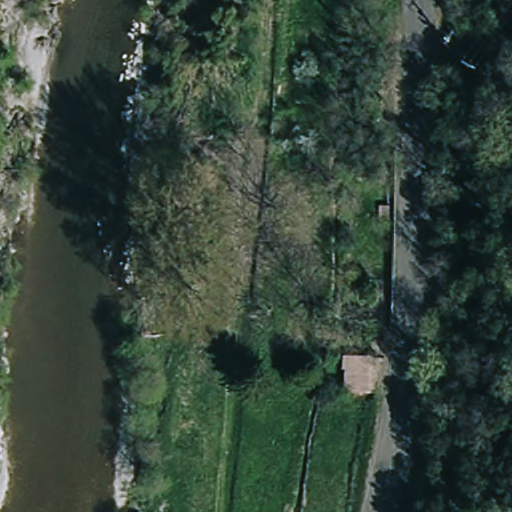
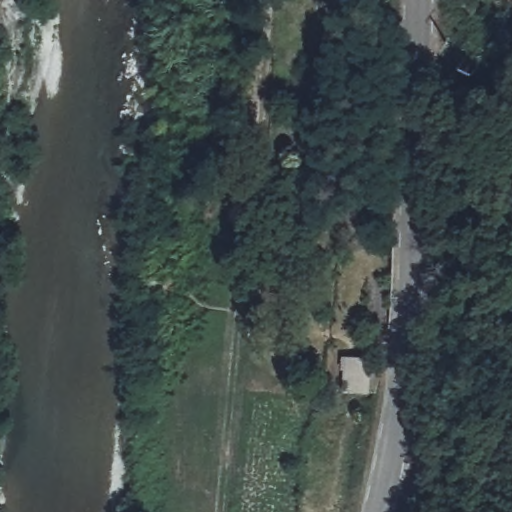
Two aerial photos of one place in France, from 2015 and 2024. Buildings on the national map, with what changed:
unchanged [(373,360),(371,391),(348,388),(350,358),(373,360)]

